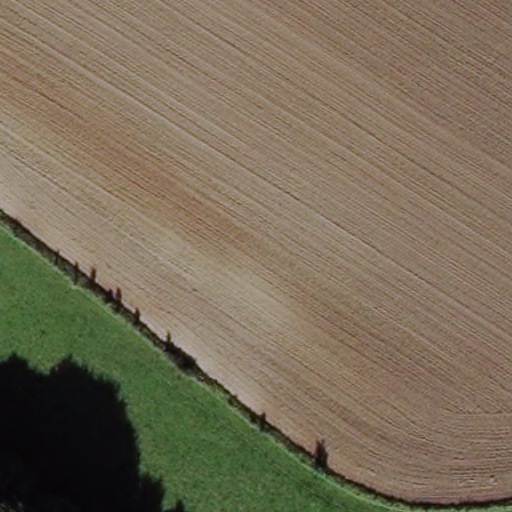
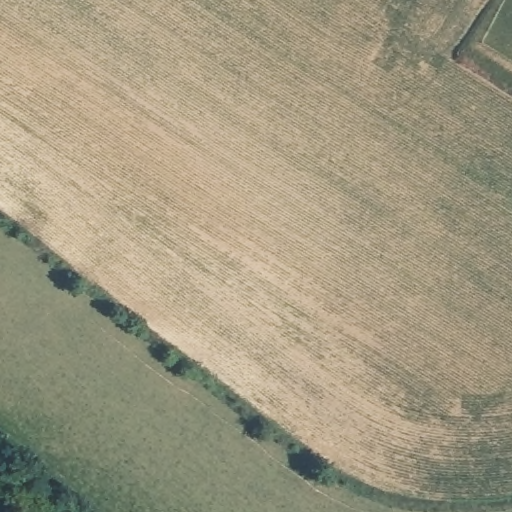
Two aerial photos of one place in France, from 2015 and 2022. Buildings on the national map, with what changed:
[]

